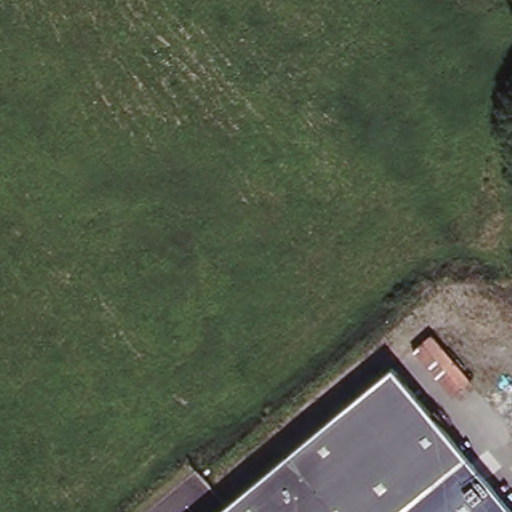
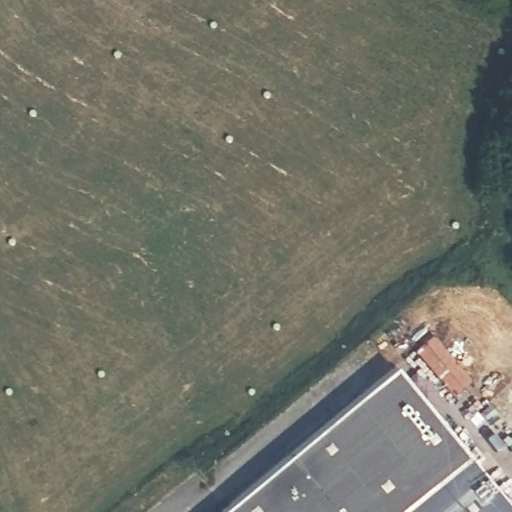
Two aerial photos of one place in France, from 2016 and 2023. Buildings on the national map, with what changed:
unchanged [(466,451),(512,506),(512,512),(216,512),(395,364),(466,451)]

